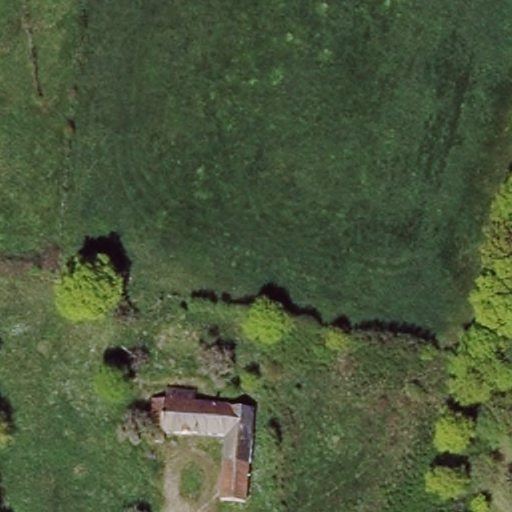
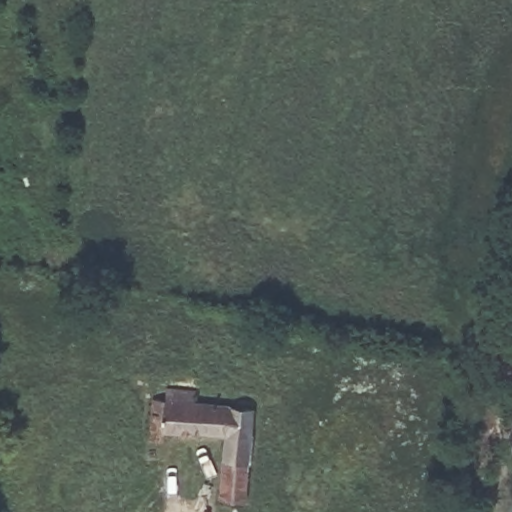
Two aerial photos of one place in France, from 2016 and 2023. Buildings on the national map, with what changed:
unchanged [(194,397),(255,402),(252,502),(223,500),(225,431),(165,426),(165,436),(149,435),(152,394),(168,395),(169,384),(194,386),(194,397)]

